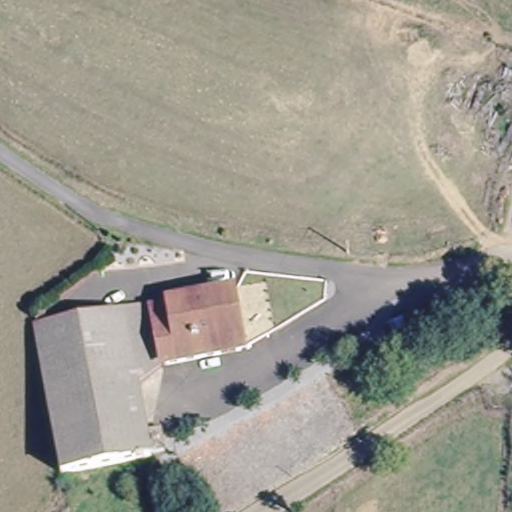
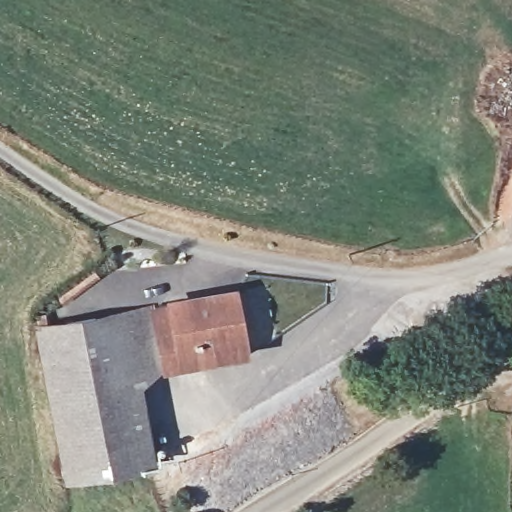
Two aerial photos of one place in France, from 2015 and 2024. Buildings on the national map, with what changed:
unchanged [(168,365),(168,362),(167,355),(165,327),(162,300),(176,298),(241,293),(247,346),(250,358),(208,361),(168,365)]
unchanged [(152,306),(163,371),(135,375),(124,310),(152,306)]
unchanged [(135,375),(150,462),(61,476),(37,323),(124,310),(135,375)]

